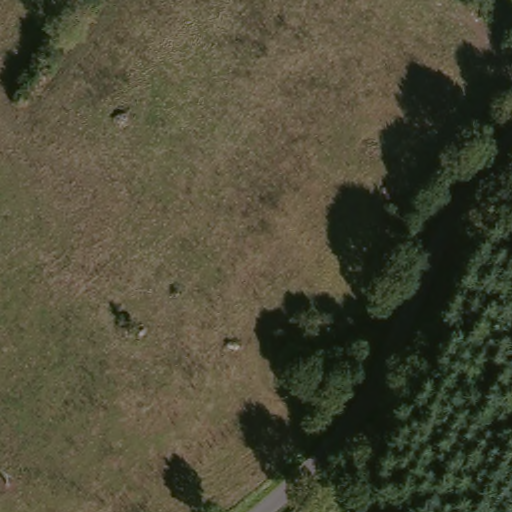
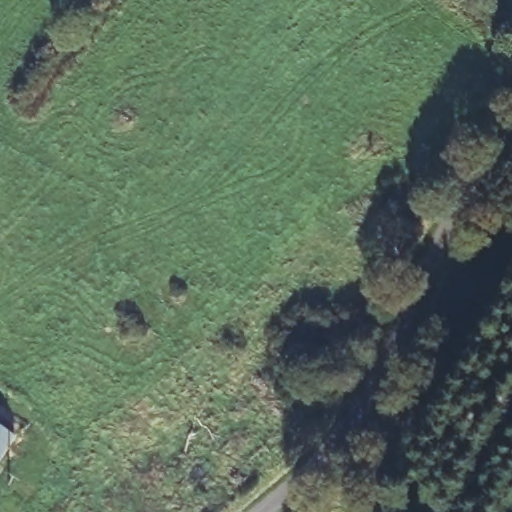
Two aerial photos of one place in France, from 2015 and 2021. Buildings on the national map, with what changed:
new [(13,438),(0,458),(0,430),(13,438)]

